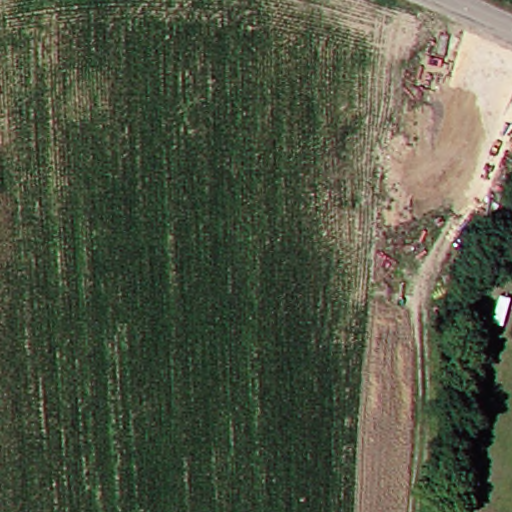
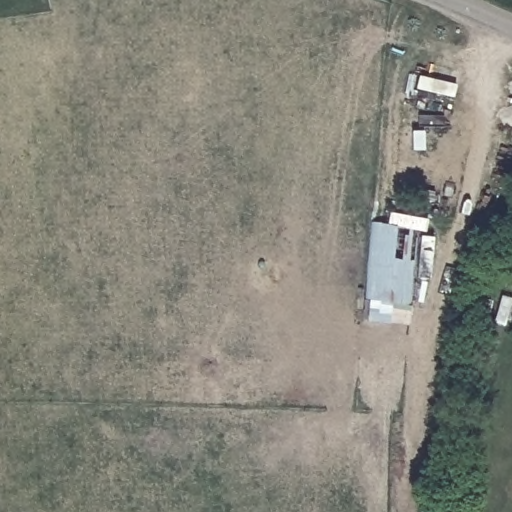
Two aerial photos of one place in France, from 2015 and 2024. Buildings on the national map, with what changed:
new [(372,222),(396,227),(392,259),(413,261),(408,326),(367,321),(372,222)]

